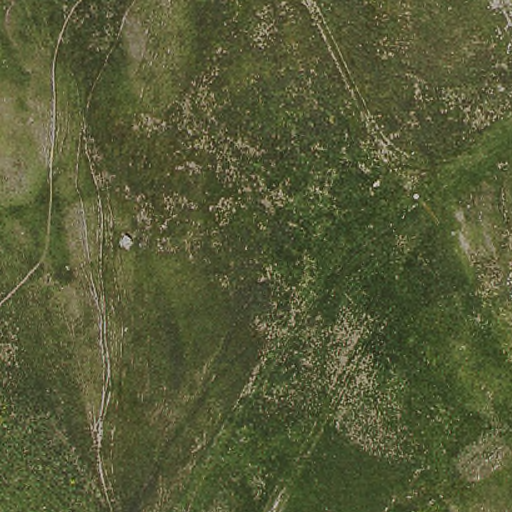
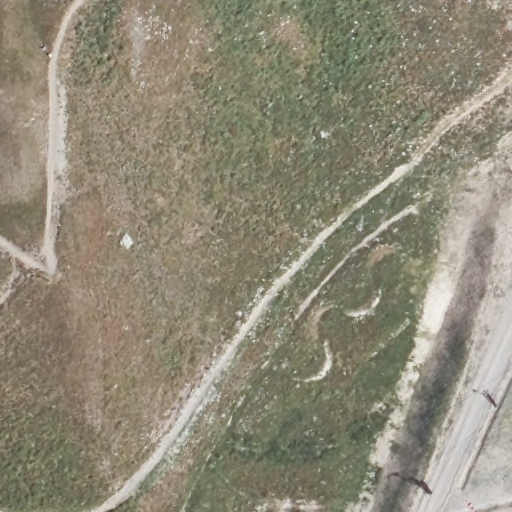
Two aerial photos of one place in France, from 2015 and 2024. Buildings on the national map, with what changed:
[]

